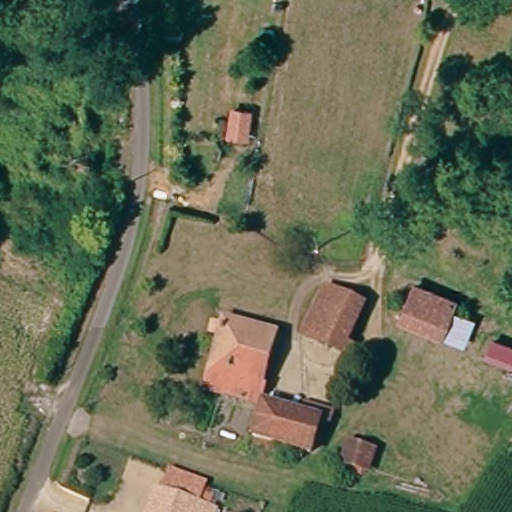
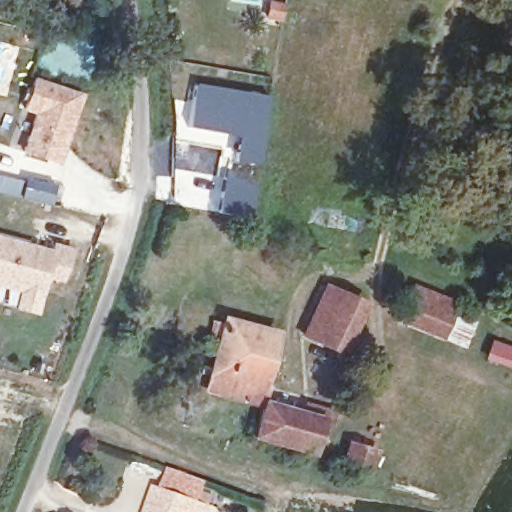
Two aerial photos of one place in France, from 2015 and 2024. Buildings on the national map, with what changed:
demolished [(109,54),(106,67),(83,59),(87,47),(109,54)]
new [(83,94),(59,167),(21,154),(32,116),(22,112),(34,78),(83,94)]
new [(267,96),(256,165),(232,161),(235,136),(187,127),(196,85),(267,96)]
demolished [(48,115),(79,123),(87,100),(122,111),(117,134),(82,124),(80,138),(90,145),(80,180),(33,167),(44,129),(48,115)]
demolished [(251,134),(235,131),(240,107),(256,109),(251,134)]
new [(0,175),(53,186),(49,204),(0,191),(0,175)]
new [(252,182),(247,216),(217,212),(222,177),(252,182)]
new [(0,237),(30,246),(35,247),(51,252),(52,246),(72,252),(63,282),(45,277),(39,297),(34,314),(15,308),(20,291),(0,285),(0,237)]
unchanged [(319,284),(363,301),(350,333),(354,336),(347,354),(335,349),(301,335),(319,284)]
unchanged [(468,313),(457,343),(402,323),(413,294),(468,313)]
unchanged [(297,462),(287,460),(290,452),(281,449),(248,441),(258,410),(203,393),(221,339),(211,335),(214,322),(225,324),(232,307),(244,306),(237,325),(281,339),(261,403),(302,414),(305,404),(327,410),(322,424),(315,422),(304,457),(299,456),(297,462)]
unchanged [(505,369),(483,362),(490,345),(510,352),(512,352),(512,372),(505,369)]
unchanged [(148,512),(157,487),(205,501),(217,505),(214,512),(148,512)]

